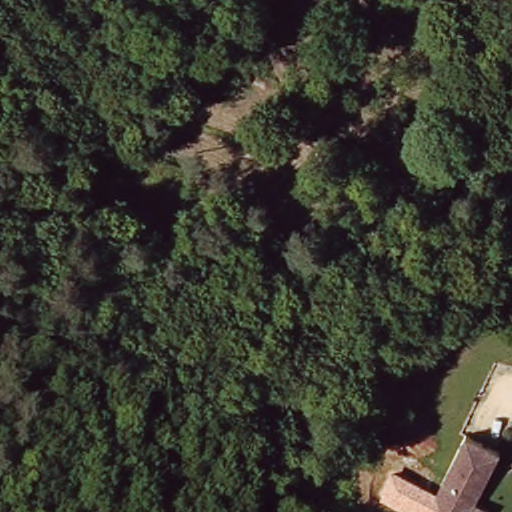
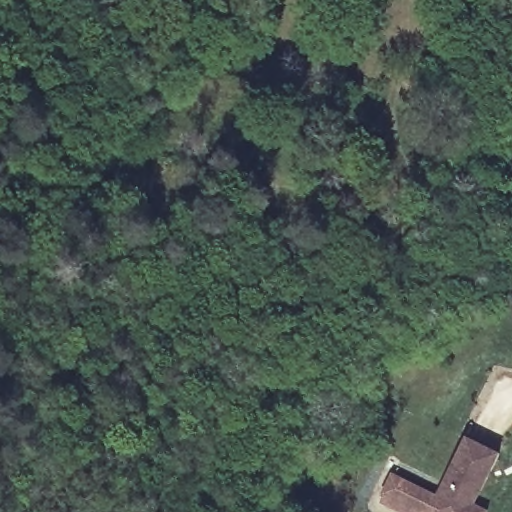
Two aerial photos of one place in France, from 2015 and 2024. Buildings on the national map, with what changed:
unchanged [(501,454),(476,503),(490,511),(490,512),(429,512),(466,435),(501,454)]
unchanged [(396,512),(387,507),(381,496),(391,475),(436,499),(429,512),(396,512)]

